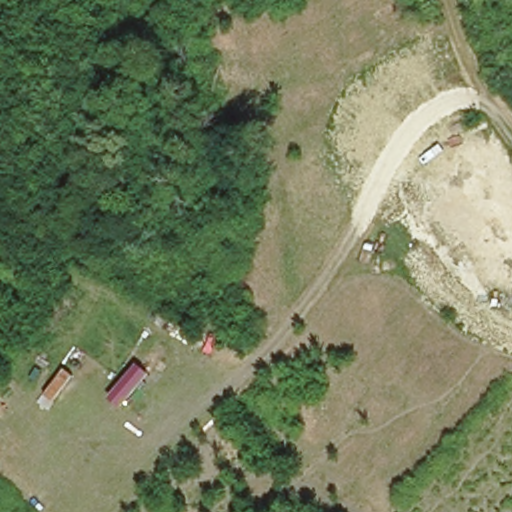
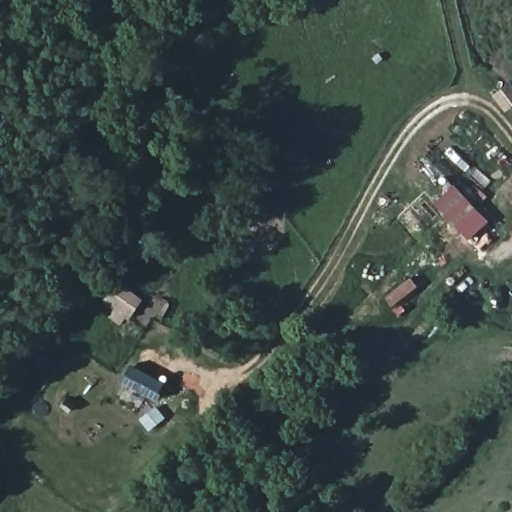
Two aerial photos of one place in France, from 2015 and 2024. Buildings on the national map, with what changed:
new [(467,239),(449,219),(433,202),(452,185),(467,201),(486,222),(467,239)]

